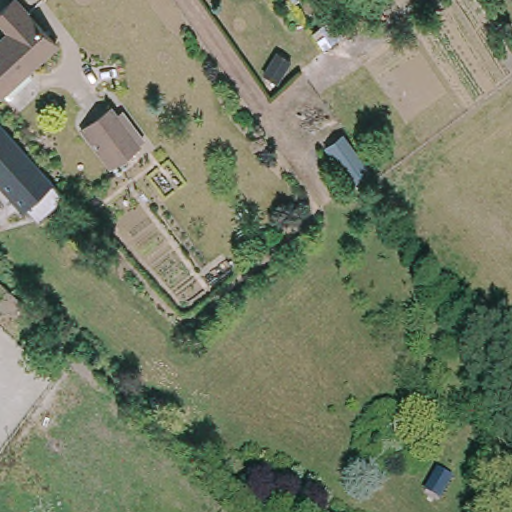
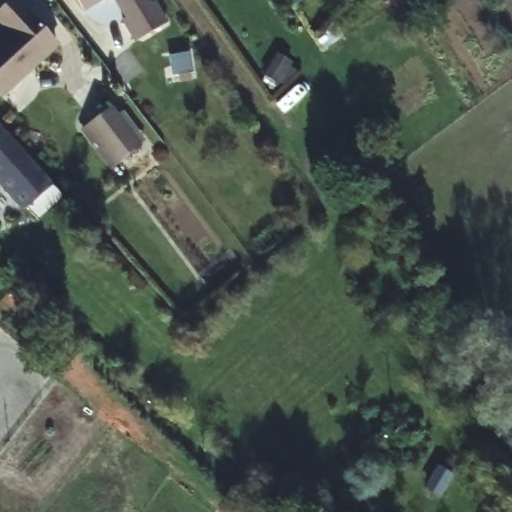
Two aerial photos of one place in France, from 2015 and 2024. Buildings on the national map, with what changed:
unchanged [(21,0),(60,45),(5,96),(0,91),(0,46),(14,33),(0,17),(0,16),(17,0),(21,0)]
new [(76,0),(99,0),(82,10),(76,0)]
new [(152,3),(165,24),(135,42),(122,20),(125,19),(114,0),(145,0),(148,5),(152,3)]
unchanged [(339,39),(340,41),(321,55),(319,52),(339,39)]
unchanged [(110,169),(82,131),(110,109),(116,117),(124,112),(145,140),(137,146),(139,148),(110,169)]
unchanged [(1,126),(0,127),(0,125),(1,126)]
unchanged [(1,126),(51,181),(24,207),(0,181),(0,127),(1,126)]

